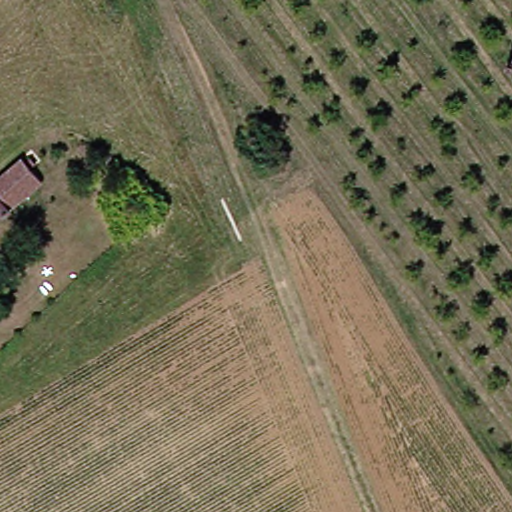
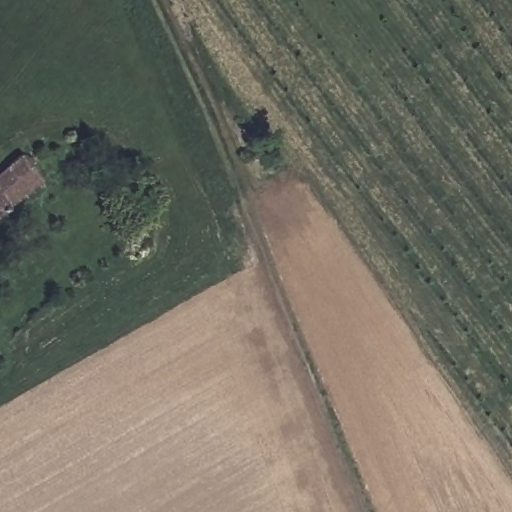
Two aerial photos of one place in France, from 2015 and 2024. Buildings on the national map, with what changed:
unchanged [(40,185),(0,216),(0,177),(20,162),(40,185)]

